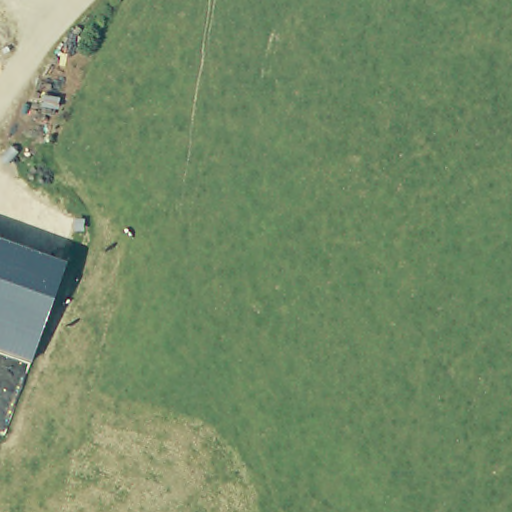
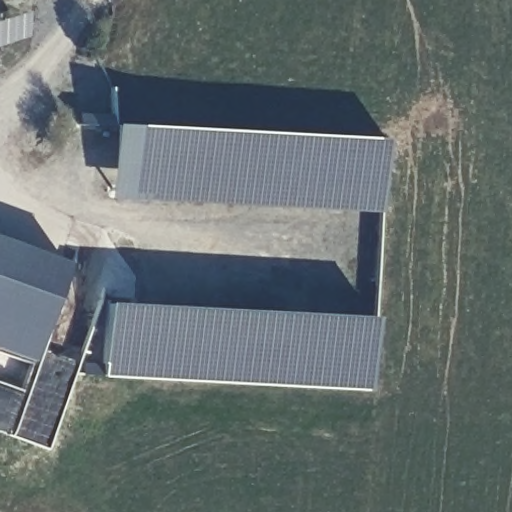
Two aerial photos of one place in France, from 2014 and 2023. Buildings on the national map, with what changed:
new [(387,132),(384,214),(110,203),(111,115),(387,132)]
unchanged [(0,240),(64,263),(30,359),(0,349),(0,240)]
new [(377,313),(373,383),(103,380),(107,304),(377,313)]

